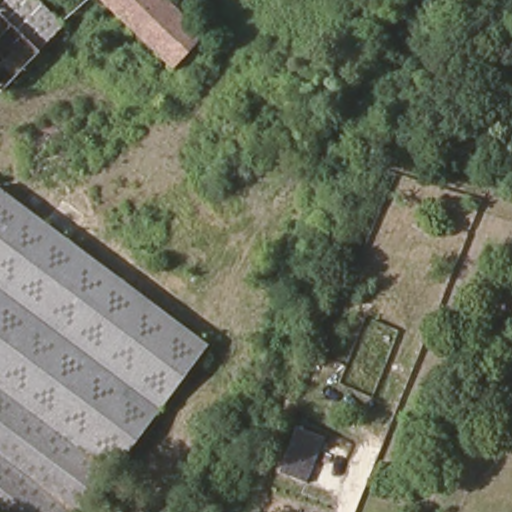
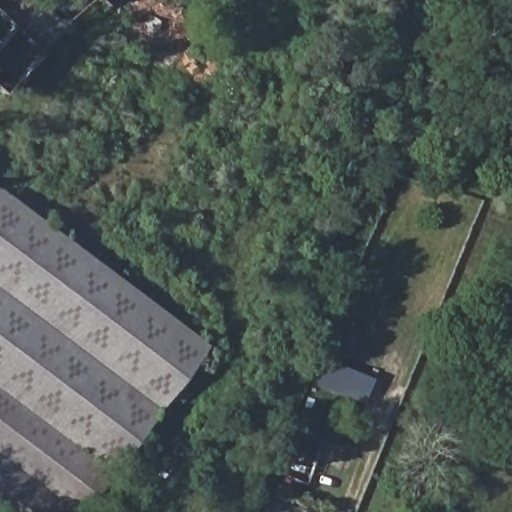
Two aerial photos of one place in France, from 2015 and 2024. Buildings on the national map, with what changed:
unchanged [(39,47),(43,51),(4,94),(0,90),(0,9),(9,0),(33,0),(59,25),(39,47)]
unchanged [(198,35),(193,41),(201,50),(189,63),(180,54),(171,64),(128,24),(102,0),(162,0),(198,35)]
unchanged [(59,234),(64,238),(154,312),(205,354),(169,399),(111,475),(0,388),(0,193),(2,190),(59,234)]
new [(373,378),(363,403),(316,384),(326,359),(373,378)]
unchanged [(83,512),(70,512),(0,458),(0,388),(111,475),(83,512)]
unchanged [(305,484),(276,472),(295,427),(324,437),(305,484)]
unchanged [(0,512),(0,458),(70,512),(0,512)]

